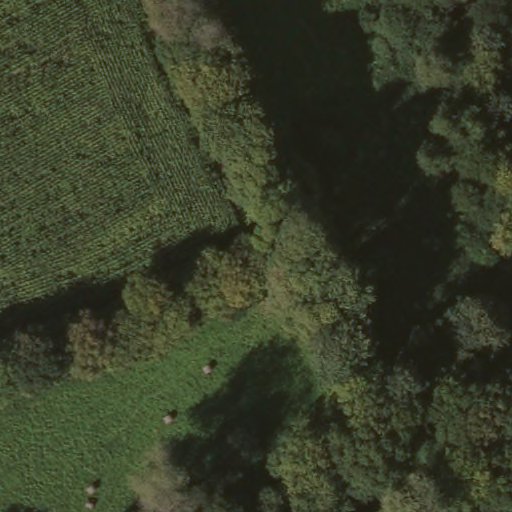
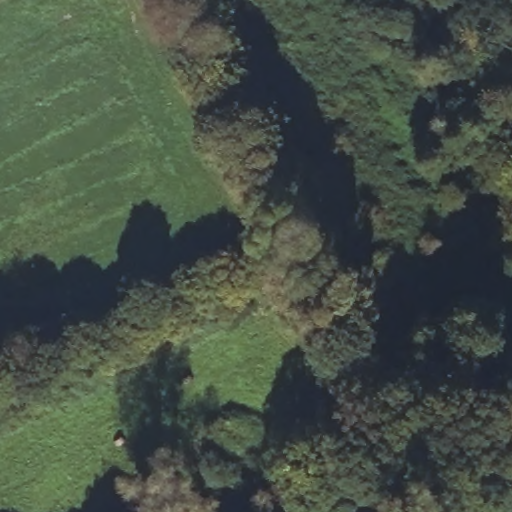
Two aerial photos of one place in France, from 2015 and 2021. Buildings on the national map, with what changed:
[]

